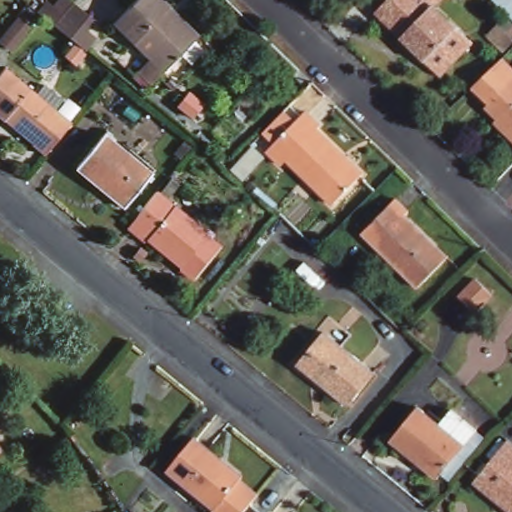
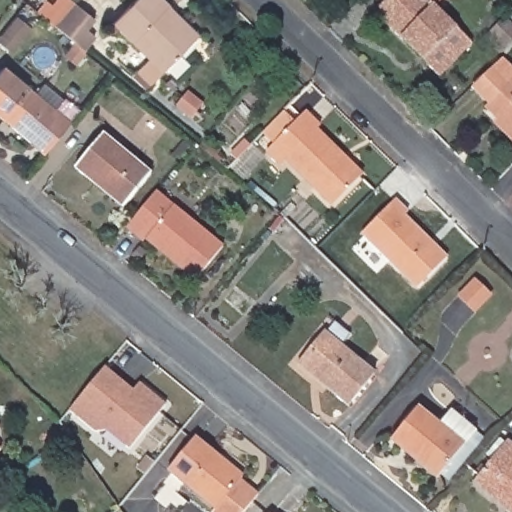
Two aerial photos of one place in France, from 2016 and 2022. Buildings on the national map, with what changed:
unchanged [(91,30),(100,36),(89,50),(59,25),(58,27),(54,23),(40,12),(50,1),(55,6),(60,0),(74,0),(75,1),(99,20),(91,30)]
unchanged [(149,60),(112,22),(135,0),(165,0),(169,4),(199,34),(193,39),(166,66),(161,72),(149,60)]
unchanged [(385,0),(427,0),(470,42),(438,76),(372,12),(385,0)]
new [(20,17),(35,29),(15,52),(1,41),(20,17)]
unchanged [(512,28),(512,42),(507,46),(502,51),(488,37),(493,32),(505,21),(512,28)]
unchanged [(1,117),(0,116),(0,70),(5,65),(36,91),(44,82),(64,99),(55,107),(71,120),(45,152),(3,116),(1,117)]
unchanged [(512,81),(512,145),(498,131),(501,127),(483,110),(512,81)]
unchanged [(321,126),(317,130),(363,175),(334,206),(288,160),(282,165),(267,151),(270,147),(260,137),(268,129),(280,115),(291,125),(305,111),(321,126)]
unchanged [(100,134),(149,174),(122,206),(73,166),(100,134)]
unchanged [(225,247),(199,281),(147,239),(145,241),(130,227),(131,225),(158,192),(225,247)]
unchanged [(395,200),(407,212),(405,216),(447,259),(418,290),(362,235),(395,200)]
unchanged [(479,283),(494,298),(477,315),(462,300),(479,283)]
unchanged [(328,333),(377,375),(351,406),(301,365),(328,333)]
new [(125,385),(134,392),(141,385),(166,408),(127,450),(105,430),(94,431),(69,408),(107,367),(125,385)]
unchanged [(425,415),(447,433),(460,418),(483,439),(445,485),(398,447),(425,415)]
unchanged [(242,477),(239,482),(258,498),(246,512),(213,512),(215,510),(169,471),(195,440),(242,477)]
unchanged [(512,512),(509,512),(475,485),(510,442),(512,444),(512,512)]

